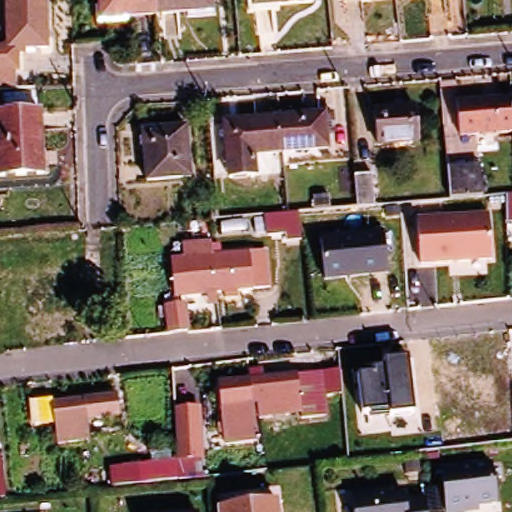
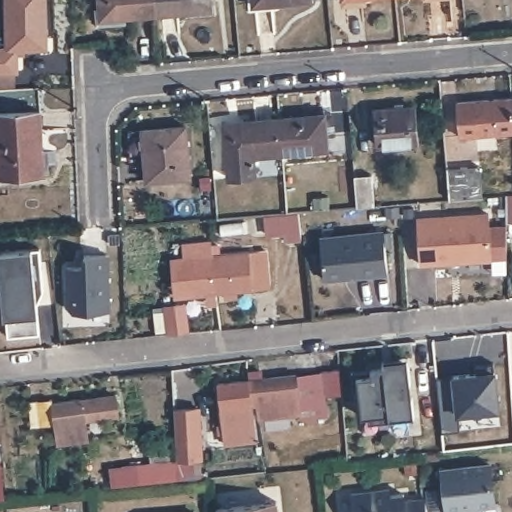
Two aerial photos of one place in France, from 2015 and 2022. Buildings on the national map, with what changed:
unchanged [(46,51),(19,52),(19,74),(0,74),(0,51),(6,50),(5,0),(44,0),(46,51)]
unchanged [(101,16),(100,0),(157,0),(159,12),(101,16)]
unchanged [(159,12),(157,0),(213,0),(214,7),(159,12)]
unchanged [(255,4),(255,0),(299,0),(255,4)]
unchanged [(457,135),(455,102),(509,98),(512,131),(457,135)]
unchanged [(512,131),(509,98),(512,98),(512,131)]
unchanged [(412,105),(415,140),(375,144),(372,109),(412,105)]
unchanged [(279,151),(276,116),(322,113),(329,112),(331,130),(324,130),(326,147),(279,151)]
unchanged [(44,177),(0,179),(0,117),(41,115),(44,177)]
unchanged [(224,156),(221,121),(276,116),(279,151),(224,156)]
unchanged [(182,130),(188,180),(144,184),(140,133),(182,130)]
unchanged [(449,172),(483,170),(486,200),(452,202),(449,172)]
unchanged [(371,179),(373,204),(354,205),(352,181),(371,179)]
unchanged [(508,224),(508,195),(512,195),(512,224),(508,224)]
unchanged [(491,215),(495,261),(422,266),(419,220),(491,215)]
unchanged [(385,231),(390,275),(325,282),(320,239),(385,231)]
new [(44,290),(37,305),(40,333),(9,336),(1,252),(41,249),(44,290)]
new [(68,306),(66,266),(84,265),(83,254),(106,252),(110,308),(73,311),(69,311),(68,306)]
unchanged [(215,295),(211,258),(246,255),(264,252),(267,289),(250,291),(215,295)]
unchanged [(207,295),(174,300),(170,262),(206,258),(211,258),(215,295),(207,295)]
demolished [(80,274),(82,287),(94,285),(97,312),(85,314),(84,309),(27,316),(22,280),(80,274)]
unchanged [(164,309),(181,307),(184,334),(166,336),(164,309)]
unchanged [(374,376),(373,370),(385,370),(385,362),(410,360),(415,415),(391,417),(390,412),(362,415),(359,378),(374,376)]
new [(484,375),(483,366),(497,365),(499,411),(462,413),(464,431),(447,432),(443,377),(484,375)]
unchanged [(220,441),(217,407),(216,381),(247,379),(247,370),(258,369),(260,378),(292,375),(336,371),(337,385),(337,402),(320,403),(322,432),(298,435),(297,418),(285,419),(285,420),(254,423),(256,438),(220,441)]
unchanged [(114,396),(117,415),(102,417),(84,419),(86,440),(54,444),(52,423),(33,425),(31,402),(51,400),(51,403),(100,398),(114,396)]
unchanged [(207,426),(195,426),(201,481),(100,492),(100,477),(154,471),(152,455),(175,457),(170,401),(205,399),(207,426)]
unchanged [(0,497),(0,465),(1,465),(2,497),(0,497)]
unchanged [(486,468),(491,508),(460,511),(460,512),(441,512),(437,474),(486,468)]
unchanged [(389,499),(403,497),(404,505),(425,502),(426,512),(352,512),(351,497),(388,493),(389,499)]
unchanged [(216,507),(276,503),(277,512),(217,512),(217,511),(216,507)]

